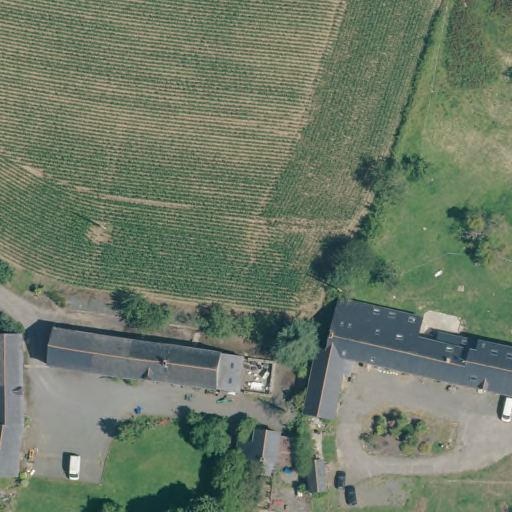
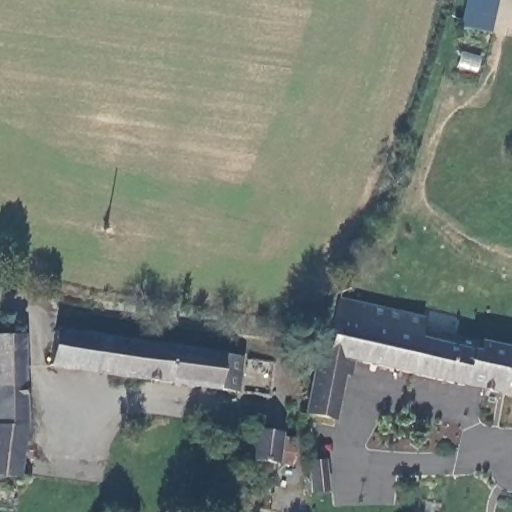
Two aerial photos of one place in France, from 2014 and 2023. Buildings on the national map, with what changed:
new [(472,0),(494,0),(489,30),(467,24),(472,0)]
unchanged [(446,381),(444,391),(424,388),(425,378),(352,365),(335,425),(309,419),(325,361),(327,348),(338,350),(346,311),(358,313),(429,326),(479,336),(481,330),(512,337),(512,394),(446,381)]
unchanged [(26,450),(25,473),(0,472),(0,332),(16,330),(27,414),(26,450)]
unchanged [(242,356),(236,393),(46,372),(50,332),(242,356)]
unchanged [(279,431),(275,447),(272,457),(265,457),(263,470),(259,470),(256,470),(252,470),(254,455),(240,453),(242,442),(244,443),(248,444),(253,428),(279,431)]
unchanged [(301,466),(315,465),(314,477),(313,490),(303,488),(301,466)]

